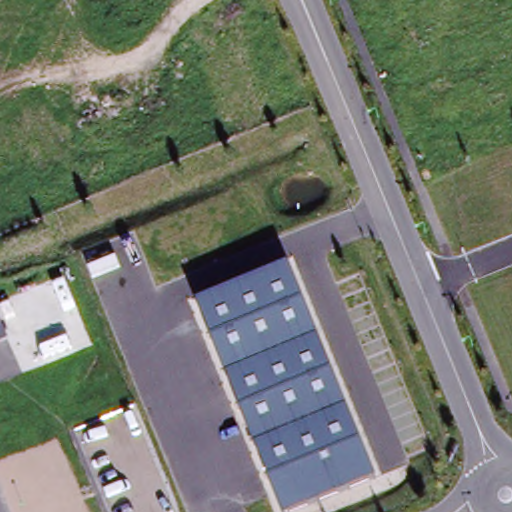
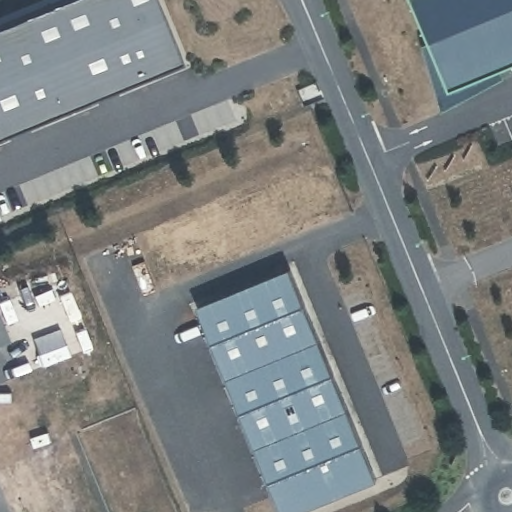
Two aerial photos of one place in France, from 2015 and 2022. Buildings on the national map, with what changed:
new [(0,27),(63,0),(155,0),(180,63),(0,136),(0,27)]
unchanged [(450,91),(412,0),(512,0),(512,66),(450,91)]
unchanged [(291,269),(377,480),(295,512),(282,512),(197,307),(291,269)]
unchanged [(0,344),(0,318),(9,340),(0,344)]

